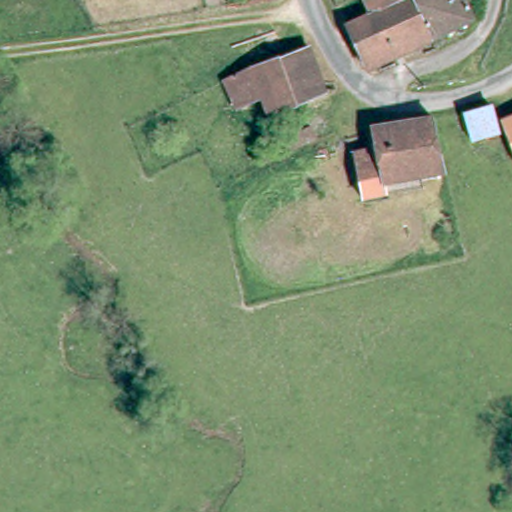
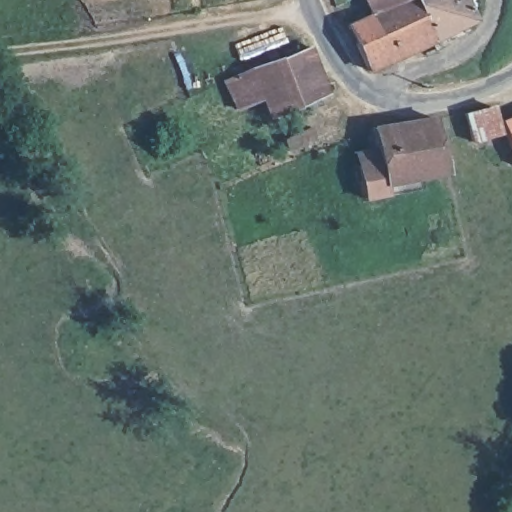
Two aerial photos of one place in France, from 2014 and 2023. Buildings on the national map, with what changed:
unchanged [(399,0),(418,0),(435,34),(375,64),(352,20),(377,9),(399,0)]
unchanged [(377,9),(373,0),(399,0),(377,9)]
unchanged [(472,15),(435,34),(418,0),(466,0),(472,15)]
unchanged [(327,94),(269,114),(264,99),(238,107),(227,78),(311,49),(327,94)]
unchanged [(491,109),(497,136),(471,142),(465,115),(491,109)]
unchanged [(512,114),(512,120),(511,115),(512,114)]
unchanged [(367,162),(362,145),(383,140),(380,128),(437,115),(451,169),(422,175),(393,183),(395,192),(376,197),(367,162)]
unchanged [(310,129),(313,140),(285,150),(280,139),(310,129)]

